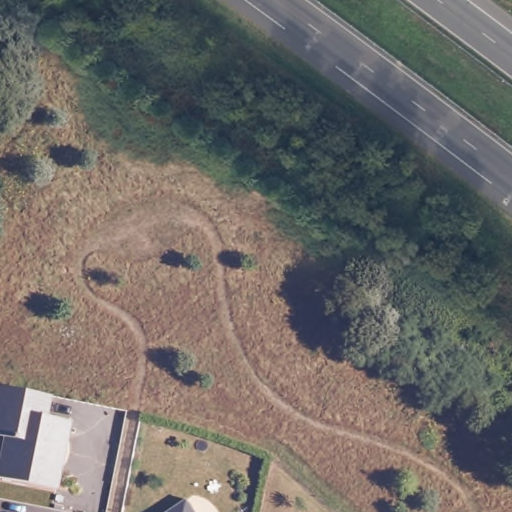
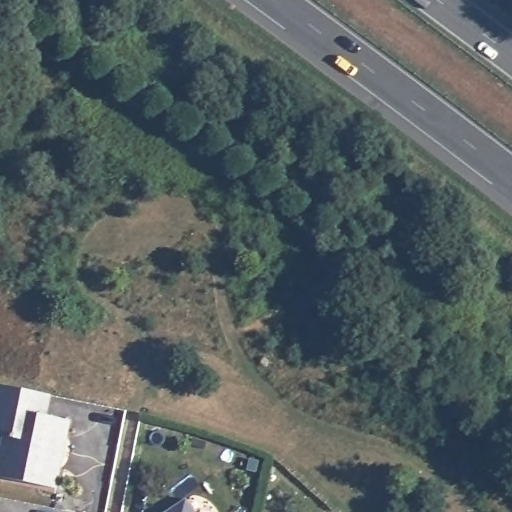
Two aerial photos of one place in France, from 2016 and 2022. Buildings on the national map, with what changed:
unchanged [(48,415),(72,420),(68,438),(61,436),(55,463),(62,465),(57,487),(0,475),(0,468),(7,435),(0,434),(0,393),(2,384),(19,387),(53,395),(48,415)]
unchanged [(199,512),(166,512),(189,497),(199,512)]
unchanged [(7,512),(0,512),(0,510),(7,512)]

